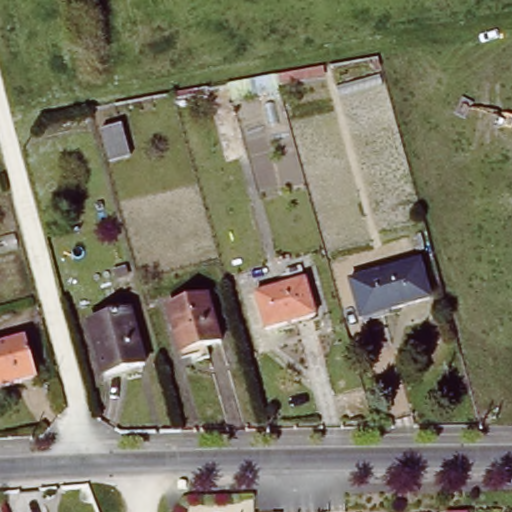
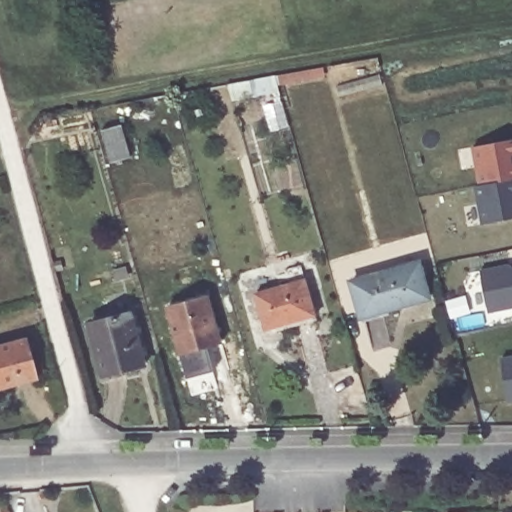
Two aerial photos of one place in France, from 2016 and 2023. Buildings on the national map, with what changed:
unchanged [(275,75),(324,66),(326,76),(278,85),(275,75)]
unchanged [(340,97),(337,86),(379,74),(382,85),(340,97)]
unchanged [(102,130),(122,124),(131,156),(111,162),(102,130)]
new [(512,140),(512,218),(480,225),(473,185),(478,185),(472,147),(512,140)]
new [(512,307),(492,311),(482,270),(512,263),(512,307)]
unchanged [(351,287),(397,274),(395,268),(410,264),(412,270),(419,267),(430,303),(361,322),(351,287)]
unchanged [(117,279),(115,271),(125,268),(127,275),(117,279)]
unchanged [(260,295),(310,281),(320,316),(270,330),(260,295)]
unchanged [(227,342),(212,346),(213,351),(187,358),(172,308),(213,296),(227,342)]
unchanged [(90,329),(130,318),(145,370),(104,381),(90,329)]
unchanged [(27,342),(38,382),(0,393),(0,350),(27,342)]

